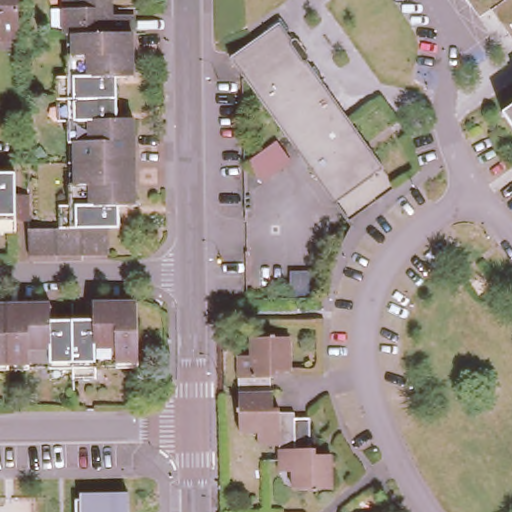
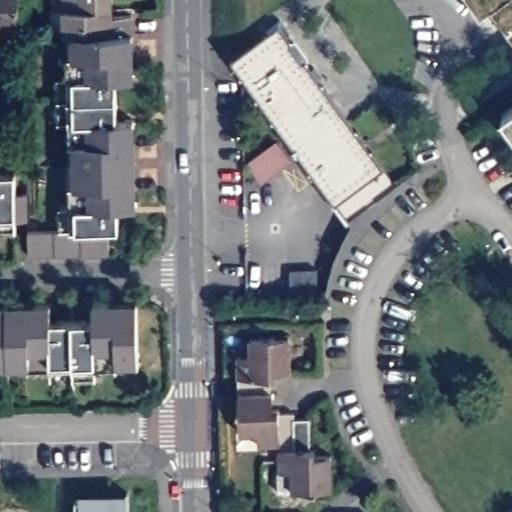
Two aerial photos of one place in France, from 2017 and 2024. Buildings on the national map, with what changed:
unchanged [(0,36),(0,0),(25,0),(25,35),(0,36)]
unchanged [(77,34),(68,34),(67,0),(114,0),(111,0),(112,15),(133,15),(134,33),(134,62),(134,76),(117,76),(118,98),(67,99),(67,76),(77,76),(77,34)]
unchanged [(480,18),(468,0),(505,0),(492,9),(480,18)]
unchanged [(505,0),(512,0),(512,38),(492,9),(505,0)]
unchanged [(340,209),(222,49),(270,13),(283,31),(283,35),(295,51),(298,51),(303,58),(307,56),(315,66),(312,69),(318,77),(322,75),(327,82),(324,85),(327,89),(342,110),(389,173),(340,209)]
unchanged [(68,229),(68,207),(80,207),(79,164),(77,120),(67,121),(67,99),(118,98),(118,120),(135,120),(135,134),(135,163),(136,191),(136,206),(120,207),(120,228),(111,228),(112,256),(97,256),(85,256),(72,257),(57,257),(45,257),(32,257),(32,229),(43,229),(57,229),(68,229)]
unchanged [(255,173),(240,152),(270,130),(286,151),(255,173)]
unchanged [(17,225),(0,225),(0,173),(17,173),(17,194),(31,194),(31,199),(32,222),(17,223),(17,225)]
unchanged [(288,269),(313,269),(313,295),(308,295),(288,295),(288,269)]
unchanged [(97,363),(97,373),(75,374),(74,319),(95,318),(95,303),(110,303),(140,302),(140,305),(140,362),(97,363)]
unchanged [(7,305),(35,304),(52,304),(52,319),(74,319),(75,374),(52,374),(52,363),(8,364),(0,365),(0,305),(7,305)]
unchanged [(243,357),(256,357),(255,338),(295,337),(295,372),(280,373),(280,378),(275,378),(275,394),(244,395),(243,357)]
unchanged [(321,455),(337,455),(337,490),(298,491),(298,472),(287,472),(287,451),(287,445),(267,445),(266,433),(245,434),(244,395),(275,394),(278,394),(278,409),(286,409),(286,413),(300,413),(300,420),(315,419),(316,450),(321,450),(321,455)]
unchanged [(75,499),(128,498),(128,512),(76,512),(75,499)]

